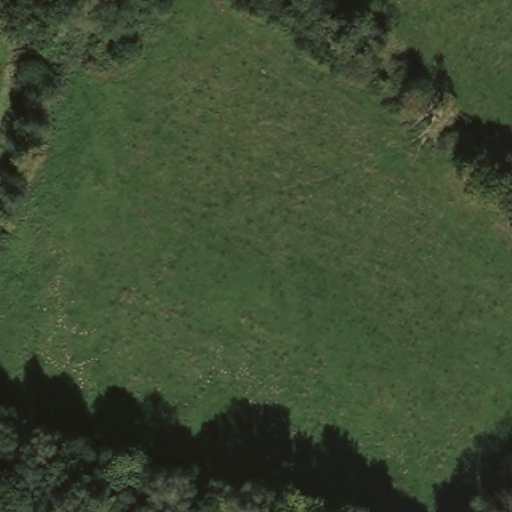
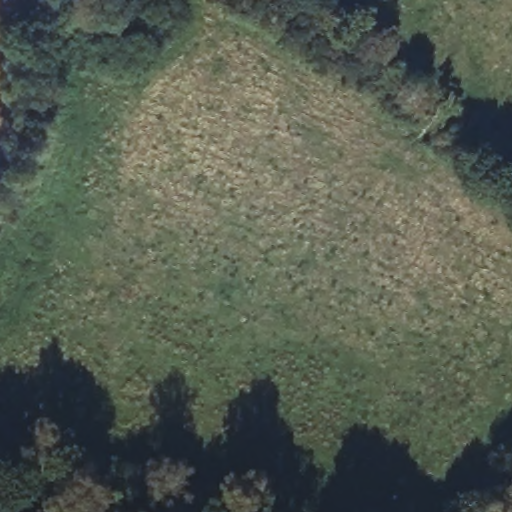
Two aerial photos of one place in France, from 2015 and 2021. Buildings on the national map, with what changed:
[]

